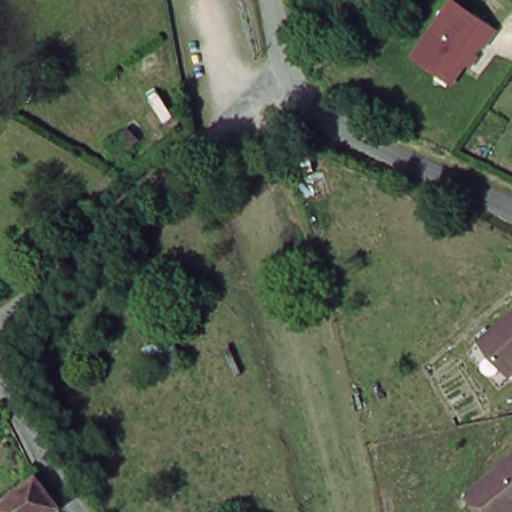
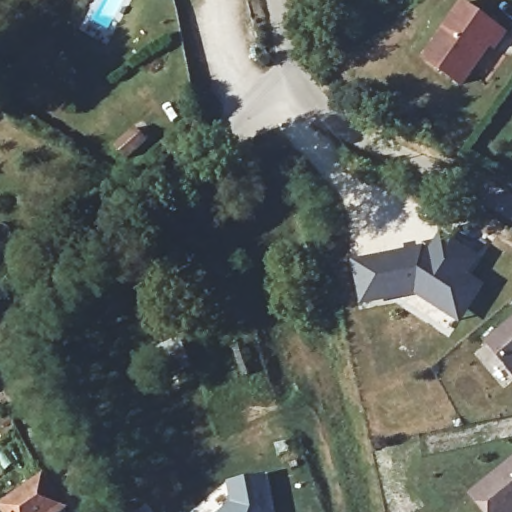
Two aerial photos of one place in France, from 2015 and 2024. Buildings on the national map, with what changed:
unchanged [(474,70),(464,85),(427,59),(466,5),(507,34),(496,49),(479,73),(474,70)]
unchanged [(156,114),(136,134),(123,121),(142,102),(156,114)]
new [(426,240),(426,242),(434,237),(437,234),(477,269),(473,273),(486,283),(458,324),(415,299),(401,299),(359,308),(349,259),(426,240)]
unchanged [(512,326),(512,368),(492,343),(512,326)]
unchanged [(165,381),(152,349),(179,336),(191,371),(165,381)]
unchanged [(469,504),(512,469),(512,512),(475,512),(469,504)]
new [(230,504),(226,482),(267,476),(273,512),(221,512),(230,504)]
unchanged [(54,512),(3,512),(40,483),(60,508),(54,512)]

